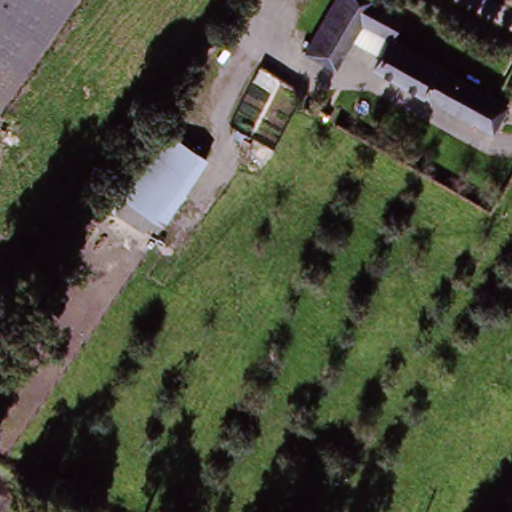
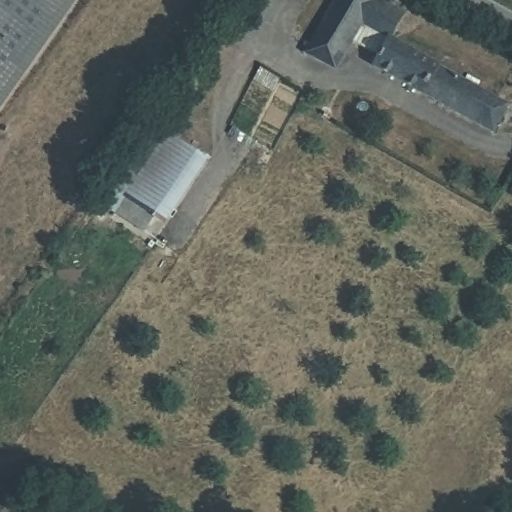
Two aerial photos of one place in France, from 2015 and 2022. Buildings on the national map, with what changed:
unchanged [(0,112),(0,0),(79,0),(0,112)]
unchanged [(367,7),(360,18),(327,60),(300,40),(332,0),(356,0),(367,7)]
unchanged [(360,18),(367,7),(356,0),(382,0),(417,21),(402,42),(360,18)]
unchanged [(512,110),(512,132),(503,144),(382,69),(402,42),(512,110)]
unchanged [(145,117),(208,159),(163,231),(146,219),(136,231),(88,200),(145,117)]

